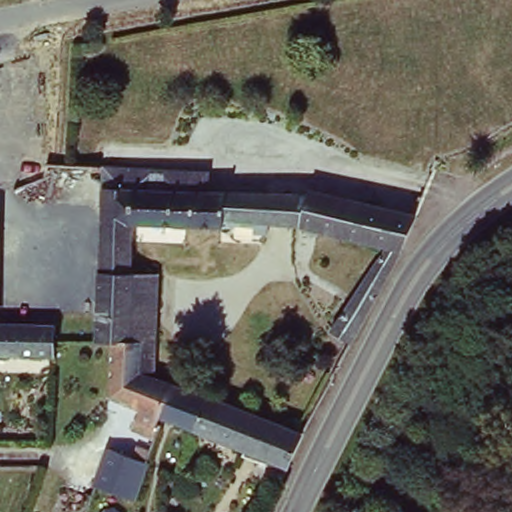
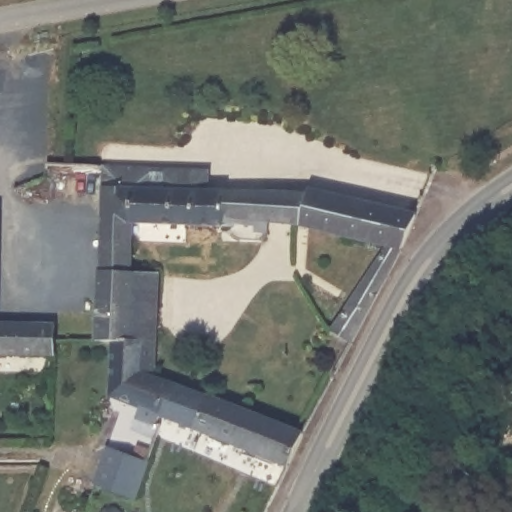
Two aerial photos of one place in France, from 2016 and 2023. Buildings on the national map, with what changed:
unchanged [(210,172),(203,188),(303,192),(295,227),(220,223),(219,228),(131,225),(132,186),(99,185),(99,166),(187,170),(210,172)]
unchanged [(132,186),(131,225),(127,272),(133,272),(130,343),(107,342),(92,341),(99,185),(132,186)]
unchanged [(397,251),(379,247),(295,227),(303,192),(304,190),(410,217),(397,251)]
unchanged [(397,251),(348,343),(326,330),(379,247),(397,251)]
unchanged [(133,272),(150,274),(149,343),(130,343),(133,272)]
unchanged [(0,353),(0,323),(56,325),(56,340),(55,354),(0,353)]
unchanged [(130,343),(149,343),(148,377),(167,385),(156,417),(152,427),(131,419),(134,409),(105,395),(107,342),(130,343)]
unchanged [(274,462),(156,417),(167,385),(204,400),(206,395),(299,432),(284,465),(274,462)]
unchanged [(110,455),(148,468),(135,503),(98,489),(110,455)]
unchanged [(112,507),(119,512),(100,512),(103,508),(112,507)]

